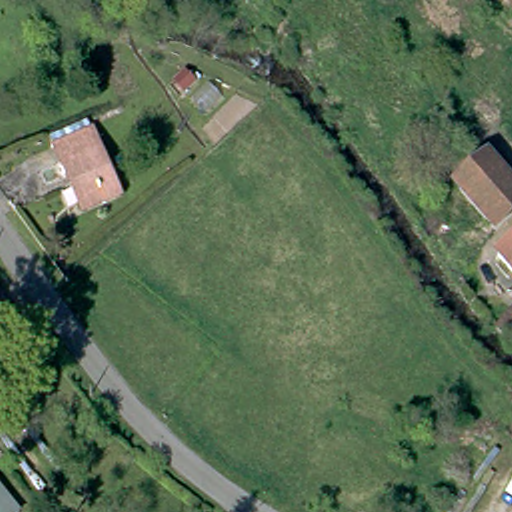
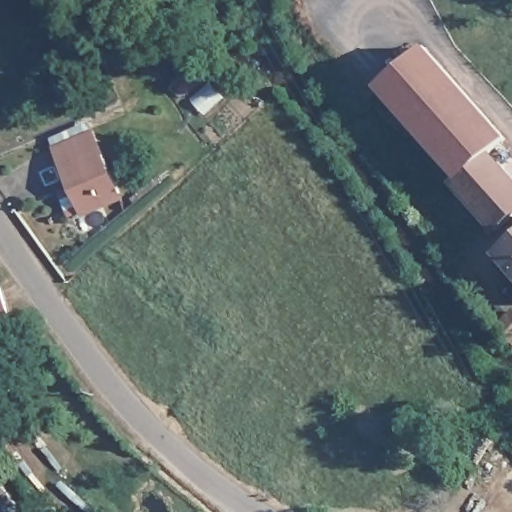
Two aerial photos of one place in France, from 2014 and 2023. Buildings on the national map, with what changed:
new [(459,181),(378,88),(427,45),(507,139),(488,155),(459,181)]
unchanged [(55,149),(93,132),(121,195),(84,212),(55,149)]
unchanged [(454,185),(488,155),(512,181),(512,215),(495,232),(454,185)]
unchanged [(498,260),(512,247),(512,276),(498,260)]
unchanged [(8,321),(0,323),(0,298),(8,321)]
unchanged [(512,312),(512,342),(498,330),(512,312)]
unchanged [(15,512),(0,512),(0,493),(15,512)]

